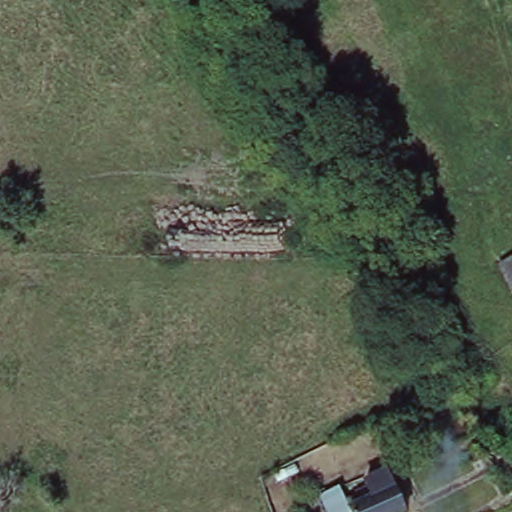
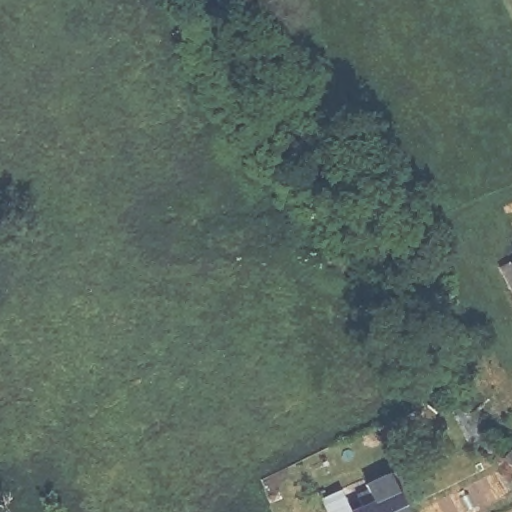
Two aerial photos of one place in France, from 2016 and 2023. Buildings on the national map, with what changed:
unchanged [(495,263),(512,255),(512,289),(506,292),(495,263)]
unchanged [(360,510),(355,500),(366,496),(362,487),(384,477),(400,512),(355,512),(360,510)]
unchanged [(339,494),(347,512),(326,512),(322,502),(339,494)]

